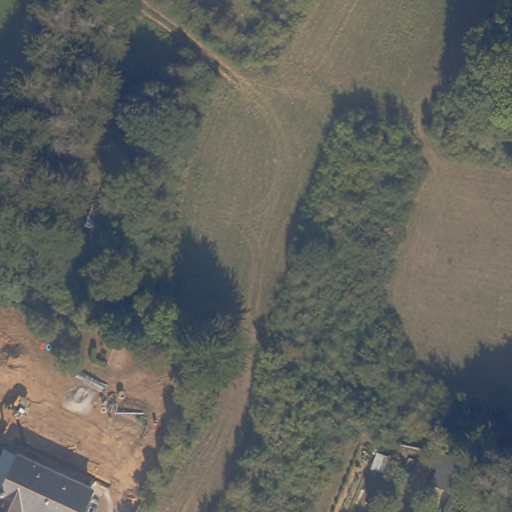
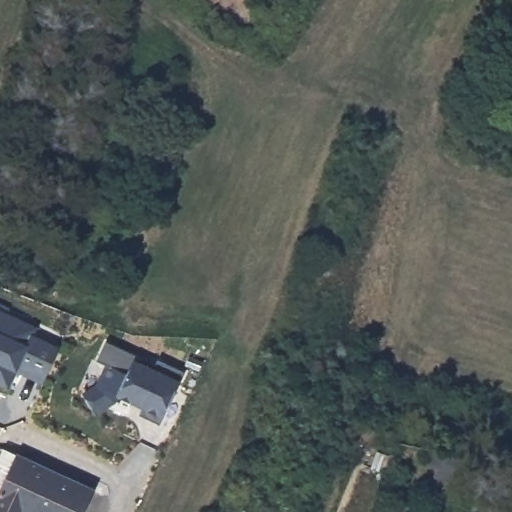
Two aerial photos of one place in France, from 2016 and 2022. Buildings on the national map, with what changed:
new [(16,371),(8,388),(0,384),(0,312),(36,329),(32,337),(59,349),(46,378),(44,383),(16,371)]
new [(139,416),(143,408),(118,396),(115,403),(95,415),(83,395),(97,387),(107,366),(97,362),(106,342),(155,365),(158,360),(185,373),(160,425),(139,416)]
unchanged [(84,512),(0,512),(0,502),(6,489),(0,486),(0,464),(7,450),(95,491),(84,512)]
unchanged [(468,456),(454,491),(433,482),(444,452),(468,456)]

